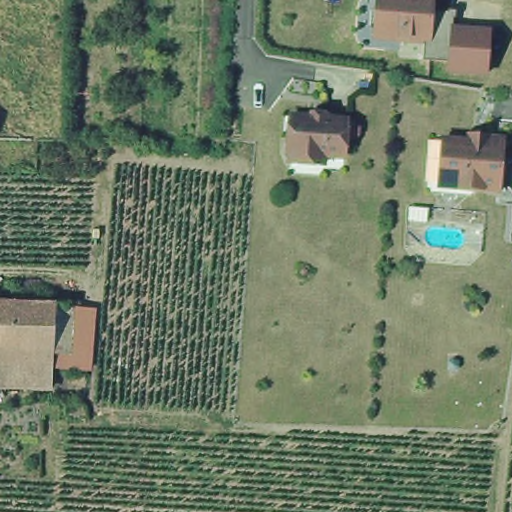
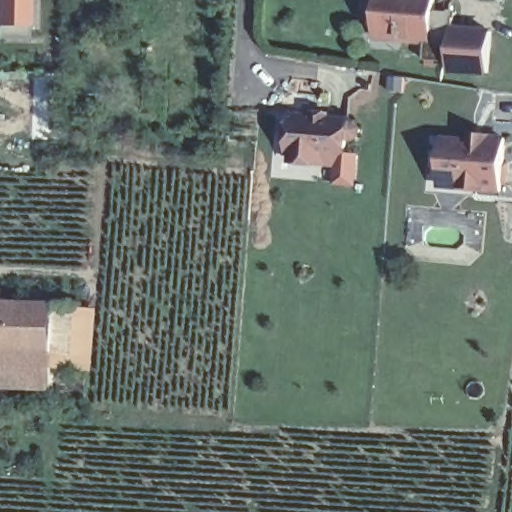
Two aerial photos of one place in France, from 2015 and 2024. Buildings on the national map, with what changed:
new [(35,0),(34,27),(34,39),(1,39),(2,26),(2,0),(35,0)]
unchanged [(399,0),(429,0),(426,46),(394,44),(387,38),(374,37),(376,18),(371,12),(372,0),(393,0),(399,0)]
unchanged [(429,7),(456,10),(454,25),(491,28),(488,76),(448,72),(449,60),(448,60),(424,59),(426,46),(429,7)]
unchanged [(338,119),(337,121),(344,122),(349,127),(348,134),(343,139),(336,138),(334,156),(314,155),(314,159),(280,157),(281,152),(278,152),(281,115),(338,119)]
unchanged [(444,162),(446,143),(471,145),(479,141),(499,143),(495,195),(471,194),(467,188),(438,186),(439,165),(444,162)]
unchanged [(49,349),(0,349),(0,304),(53,306),(49,349)]
unchanged [(47,385),(0,383),(0,349),(49,349),(47,385)]

